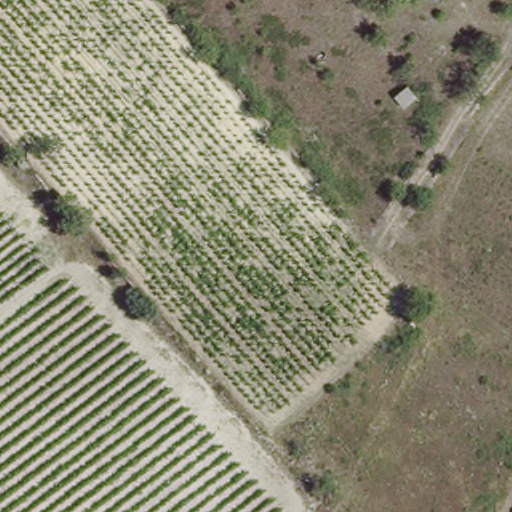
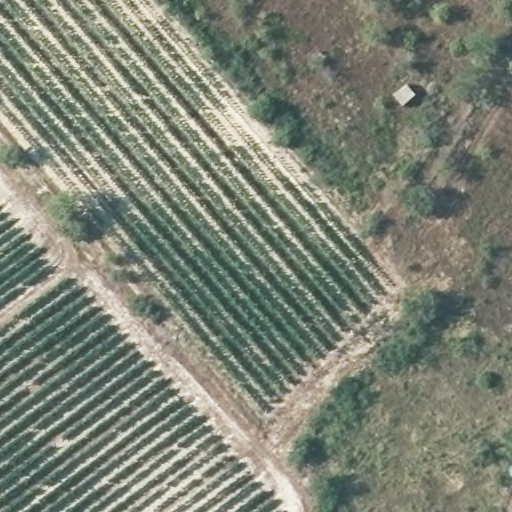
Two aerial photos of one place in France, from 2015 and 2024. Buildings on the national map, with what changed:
unchanged [(404,90),(412,97),(396,112),(390,103),(404,90)]

